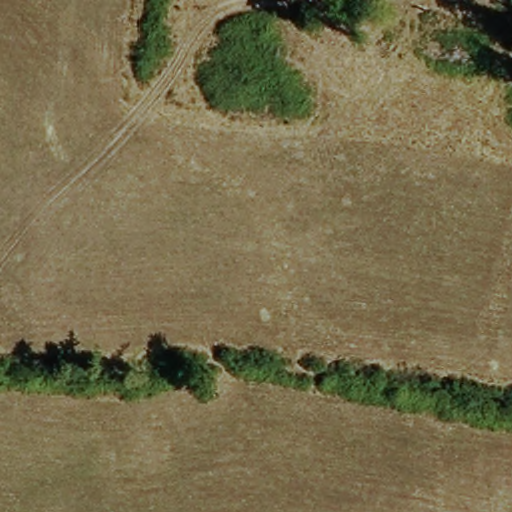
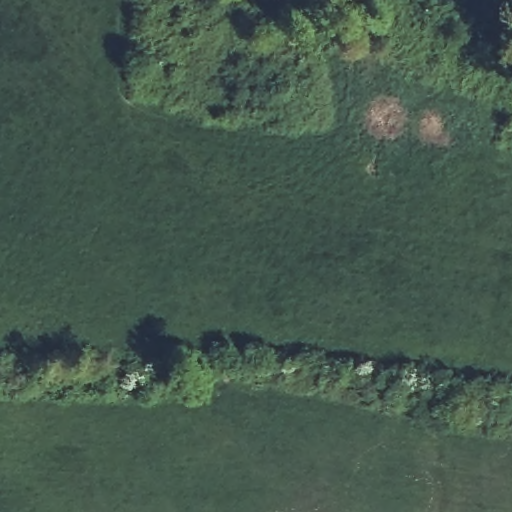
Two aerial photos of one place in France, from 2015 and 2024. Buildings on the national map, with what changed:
[]

